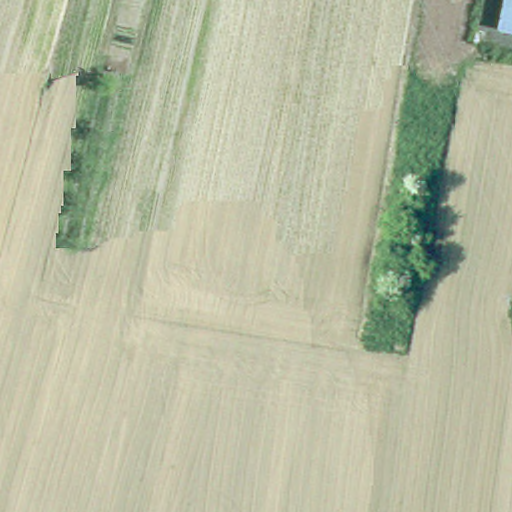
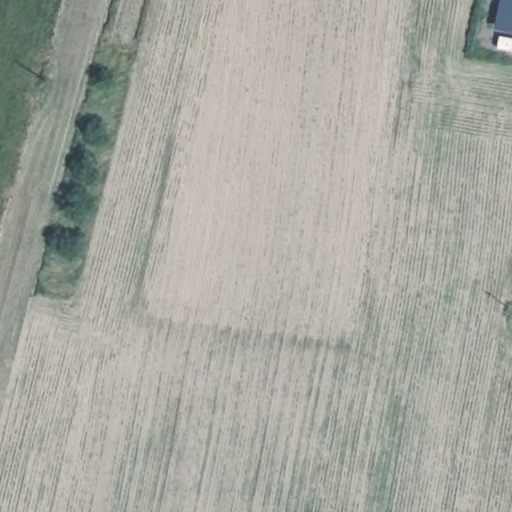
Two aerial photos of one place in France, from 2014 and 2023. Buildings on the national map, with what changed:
unchanged [(504,0),(512,0),(512,31),(499,29),(504,0)]

